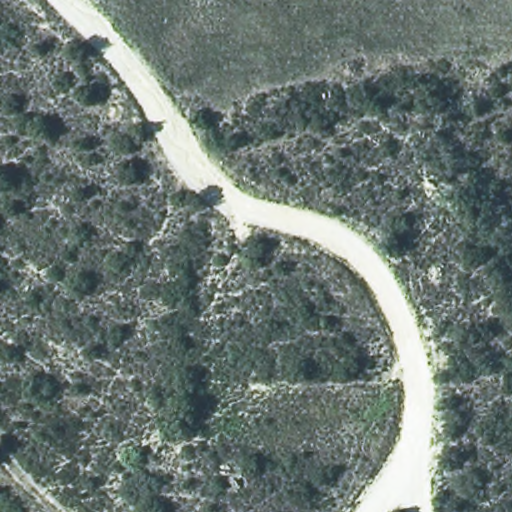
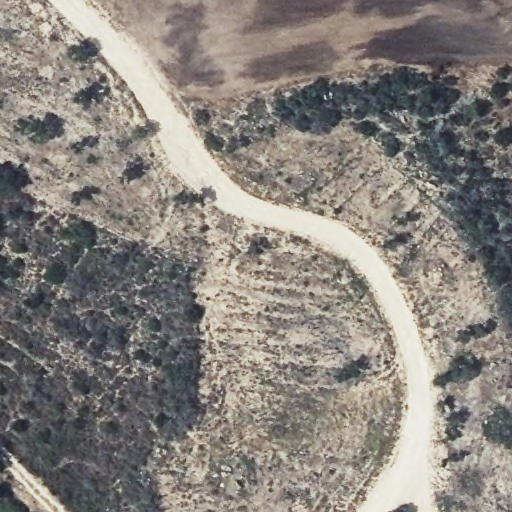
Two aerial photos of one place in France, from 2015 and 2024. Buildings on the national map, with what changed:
[]

